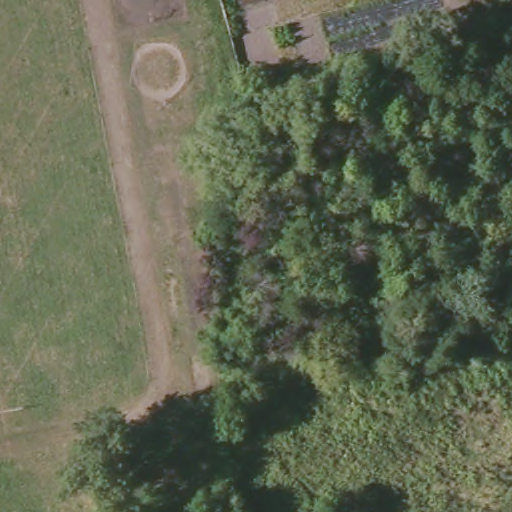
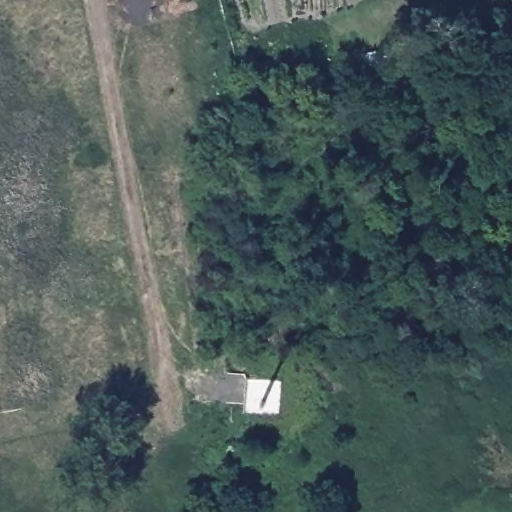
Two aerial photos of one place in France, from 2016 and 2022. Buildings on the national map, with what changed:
[]

